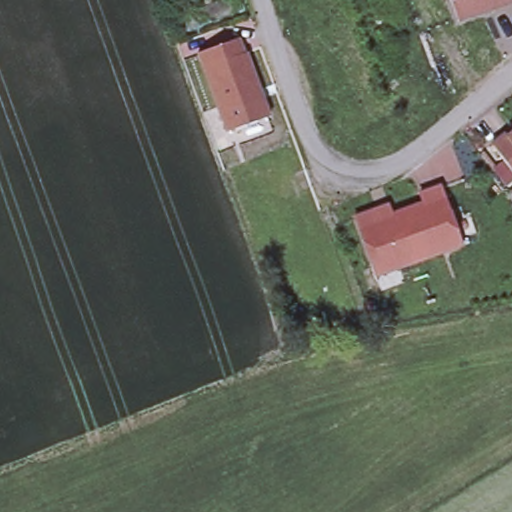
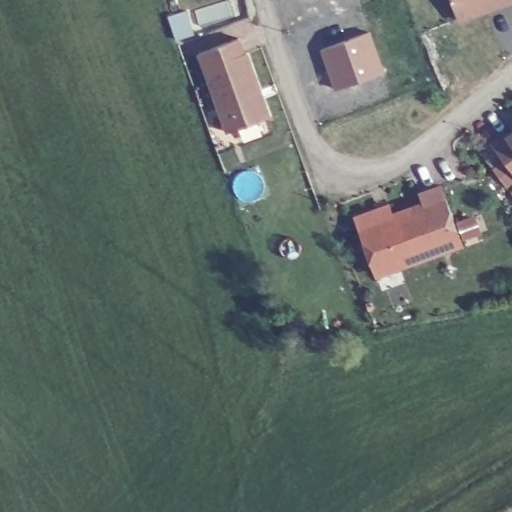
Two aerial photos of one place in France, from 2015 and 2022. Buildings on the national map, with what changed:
unchanged [(451,0),(499,0),(457,15),(451,0)]
new [(386,71),(334,90),(319,49),(371,30),(386,71)]
unchanged [(197,51),(238,36),(243,50),(246,50),(269,114),(226,129),(197,51)]
unchanged [(492,144),(504,133),(507,135),(512,131),(512,169),(492,144)]
unchanged [(373,266),(355,217),(376,209),(381,218),(424,203),(420,194),(441,185),(462,243),(396,267),(376,274),(373,266)]

